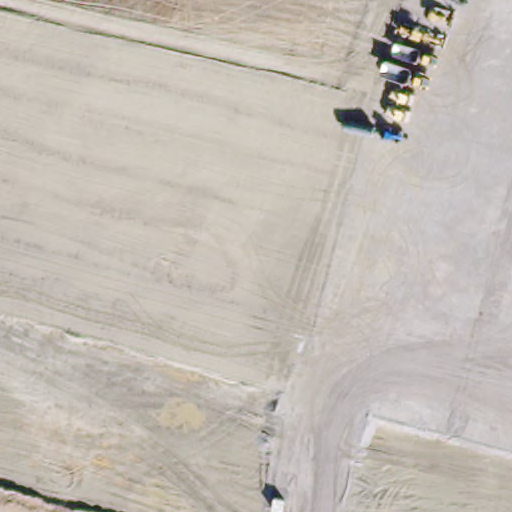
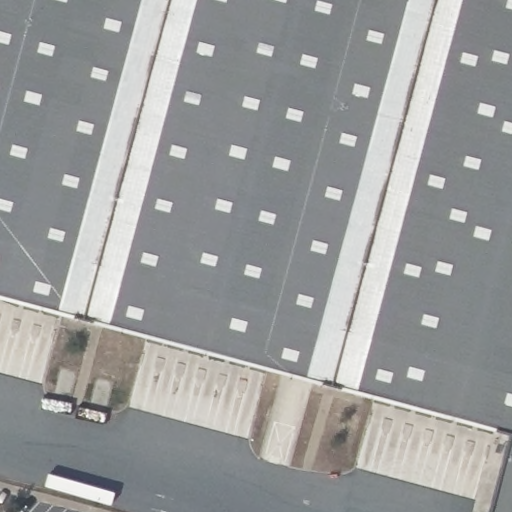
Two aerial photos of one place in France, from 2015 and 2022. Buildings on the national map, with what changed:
new [(507,434),(0,297),(0,0),(512,0),(512,512),(486,512),(507,434)]

